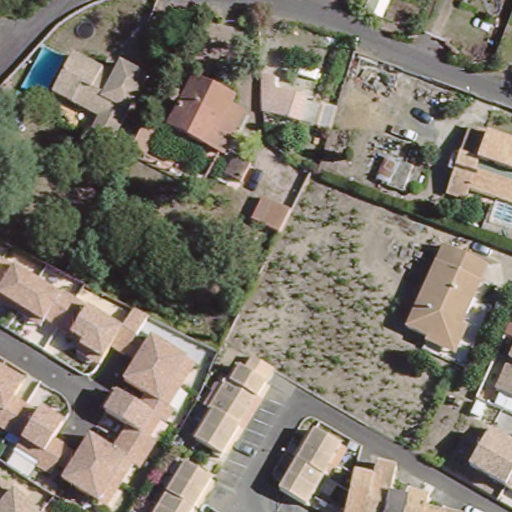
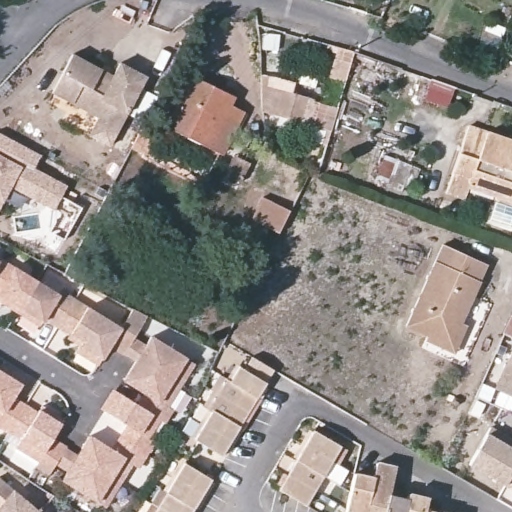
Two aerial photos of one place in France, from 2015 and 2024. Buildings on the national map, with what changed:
demolished [(386,15),(367,9),(371,0),(392,0),(386,15)]
unchanged [(92,142),(95,138),(102,124),(56,99),(77,59),(104,72),(117,79),(123,68),(149,82),(115,148),(113,153),(92,142)]
unchanged [(225,157),(217,153),(203,146),(163,126),(167,117),(186,76),(226,95),(222,103),(237,110),(243,114),(237,128),(250,135),(247,141),(251,144),(243,161),(236,177),(220,170),(225,157)]
unchanged [(323,135),(274,122),(271,85),(285,89),(282,98),(330,113),(323,135)]
unchanged [(465,190),(446,183),(468,116),(512,132),(512,186),(472,173),(465,190)]
new [(0,204),(0,130),(42,153),(35,166),(68,184),(54,209),(11,185),(2,200),(0,204)]
unchanged [(414,186),(406,183),(404,187),(389,181),(400,156),(422,165),(414,186)]
unchanged [(283,231),(252,217),(261,195),(292,208),(283,231)]
unchanged [(465,327),(465,328),(454,350),(454,351),(452,357),(423,343),(425,338),(403,327),(440,245),(480,264),(486,267),(479,283),(464,315),(454,310),(449,318),(456,322),(460,324),(465,327)]
unchanged [(22,380),(13,393),(61,420),(54,432),(80,446),(85,433),(112,445),(126,423),(103,408),(114,390),(136,398),(141,391),(123,381),(133,357),(113,345),(106,355),(96,353),(88,360),(76,350),(80,341),(68,332),(0,296),(0,281),(10,263),(54,287),(121,325),(134,307),(148,315),(134,334),(148,342),(152,336),(194,362),(108,508),(60,481),(35,465),(37,460),(15,446),(17,440),(0,428),(0,366),(22,380)]
unchanged [(509,355),(512,349),(512,394),(494,386),(509,355)]
unchanged [(220,470),(211,465),(212,462),(195,453),(193,451),(201,438),(209,423),(207,421),(214,408),(222,394),(227,396),(237,377),(244,380),(252,366),(277,380),(220,470)]
unchanged [(512,438),(512,490),(469,466),(492,425),(512,439),(512,438)]
unchanged [(338,461),(330,475),(322,489),(313,505),(286,490),(294,476),(304,460),(312,446),(321,432),(346,446),(338,461)]
unchanged [(157,512),(159,510),(168,495),(177,480),(187,463),(188,463),(207,476),(209,475),(217,479),(197,512),(157,512)]
unchanged [(357,480),(358,476),(376,481),(379,467),(381,468),(387,470),(399,472),(393,498),(409,502),(409,499),(424,502),(421,512),(348,512),(352,497),(357,480)]
unchanged [(32,510),(30,512),(0,512),(0,485),(32,510)]
unchanged [(430,505),(428,512),(421,512),(424,502),(430,505)]
unchanged [(33,512),(30,512),(32,510),(33,512)]

